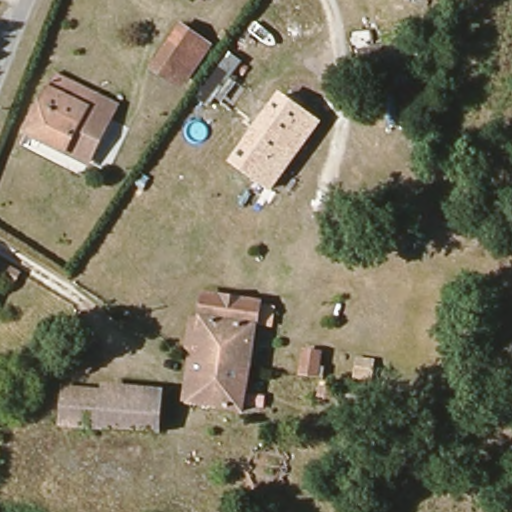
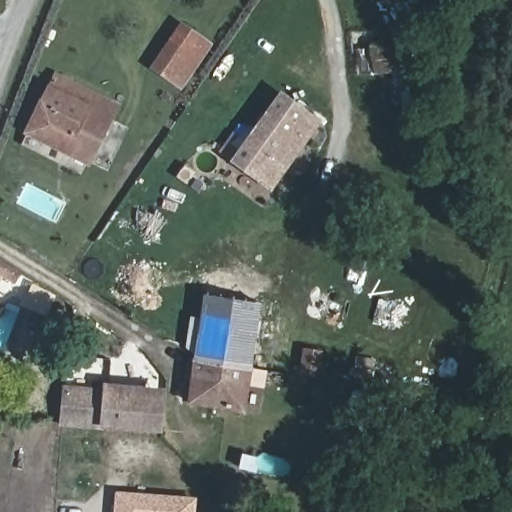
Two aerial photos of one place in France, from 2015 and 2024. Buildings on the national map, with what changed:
unchanged [(206,43),(179,89),(149,69),(178,25),(206,43)]
unchanged [(360,61),(403,56),(407,81),(363,87),(360,61)]
unchanged [(90,157),(30,129),(51,87),(110,115),(90,157)]
unchanged [(225,169),(287,88),(302,100),(292,115),(294,117),(245,184),(225,169)]
unchanged [(294,117),(311,131),(263,197),(245,184),(294,117)]
unchanged [(0,272),(0,260),(24,275),(19,283),(0,272)]
unchanged [(204,292),(257,300),(246,361),(195,351),(204,292)]
unchanged [(315,385),(297,380),(301,350),(319,352),(315,385)]
unchanged [(205,416),(195,414),(197,400),(186,397),(191,372),(194,355),(195,351),(246,361),(238,406),(221,403),(217,420),(205,416)]
unchanged [(363,376),(342,373),(345,355),(366,359),(363,376)]
unchanged [(161,387),(158,411),(63,403),(66,377),(161,387)]
unchanged [(60,435),(63,403),(158,411),(155,439),(154,443),(60,435)]
new [(114,491),(195,497),(195,512),(113,512),(114,491)]

